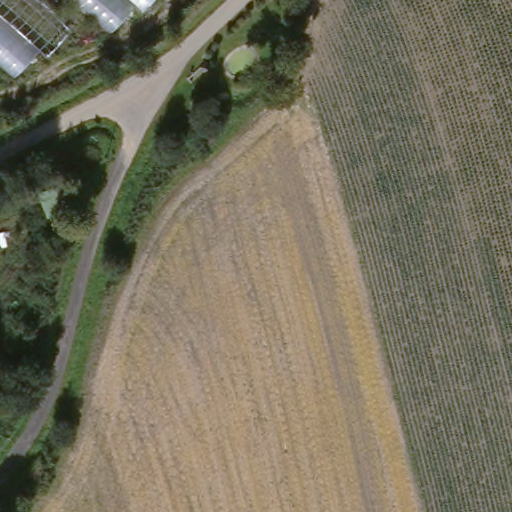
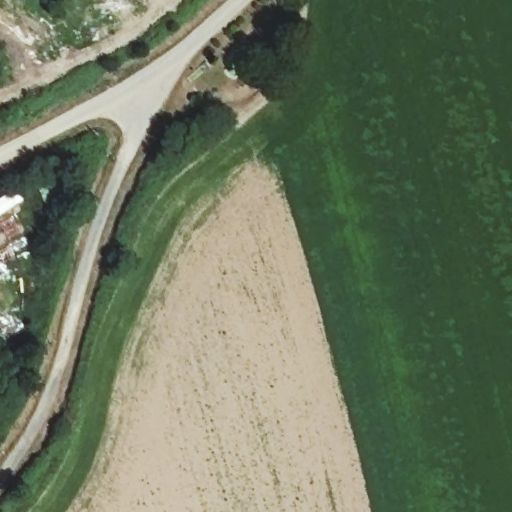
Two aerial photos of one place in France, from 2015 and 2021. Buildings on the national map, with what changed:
demolished [(46,56),(36,50),(18,76),(0,61),(0,0),(44,0),(73,25),(46,56)]
demolished [(144,11),(134,4),(111,30),(77,0),(153,0),(144,11)]
unchanged [(228,83),(213,58),(225,50),(243,77),(228,83)]

